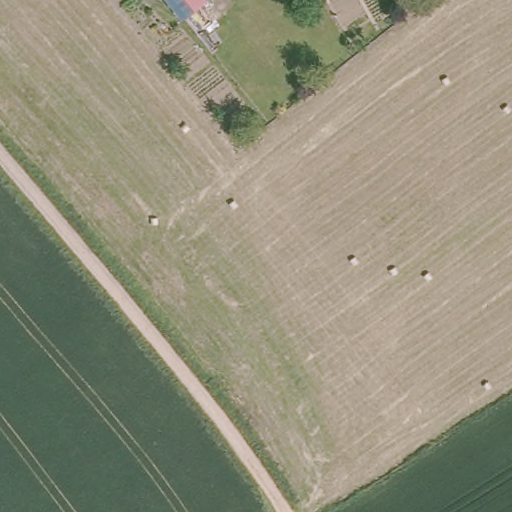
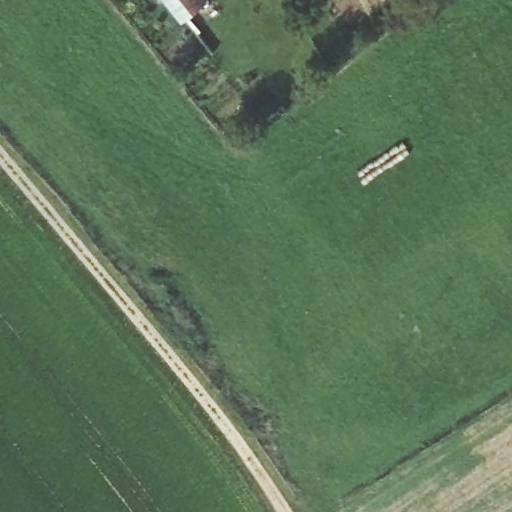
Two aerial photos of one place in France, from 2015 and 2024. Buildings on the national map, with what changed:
unchanged [(218,3),(194,23),(193,21),(175,0),(216,0),(218,3)]

